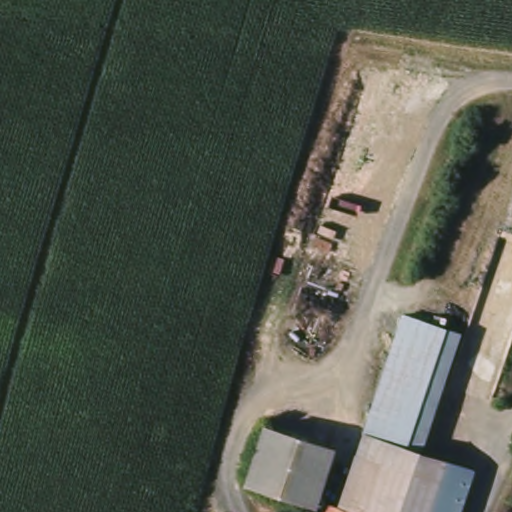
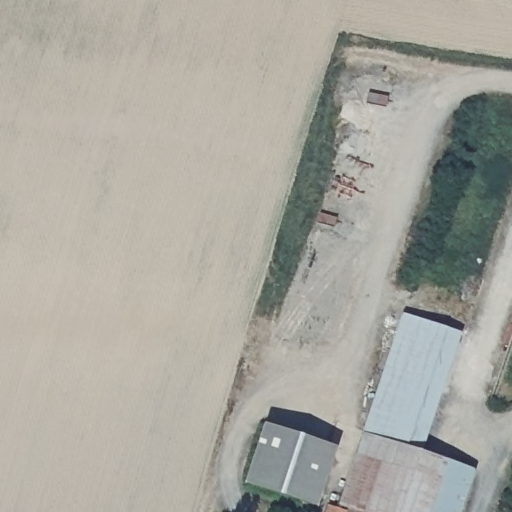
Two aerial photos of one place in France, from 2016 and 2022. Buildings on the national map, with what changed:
unchanged [(388,368),(404,317),(463,338),(447,390),(388,368)]
unchanged [(426,454),(366,437),(388,368),(447,390),(426,454)]
unchanged [(334,446),(315,506),(249,485),(267,424),(334,446)]
unchanged [(366,437),(426,454),(479,472),(467,512),(373,512),(345,503),(366,437)]
unchanged [(345,503),(373,512),(333,512),(337,500),(345,503)]

